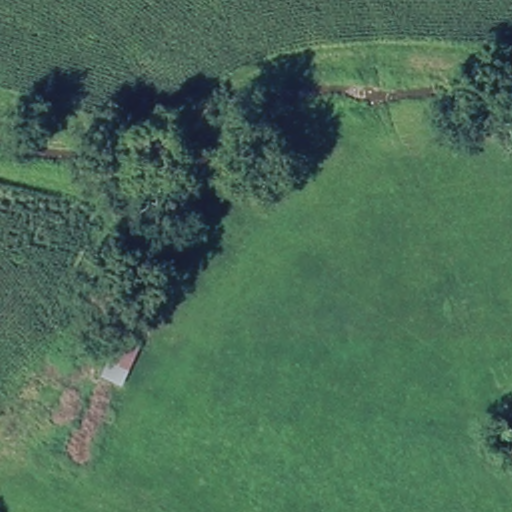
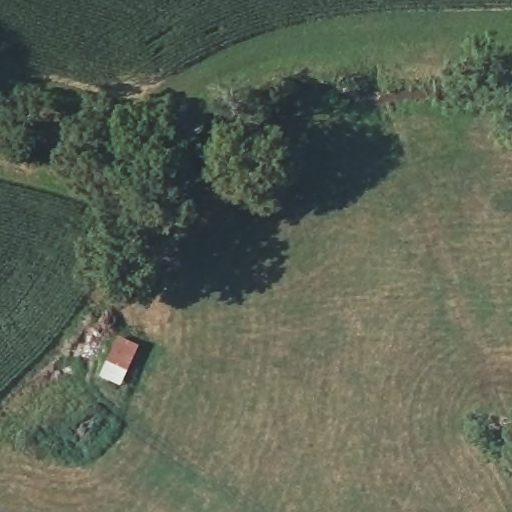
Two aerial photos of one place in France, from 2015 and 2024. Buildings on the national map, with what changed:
unchanged [(142,350),(123,389),(98,381),(120,341),(142,350)]

